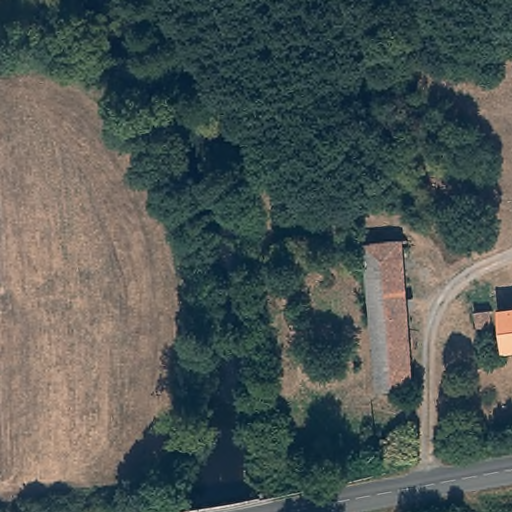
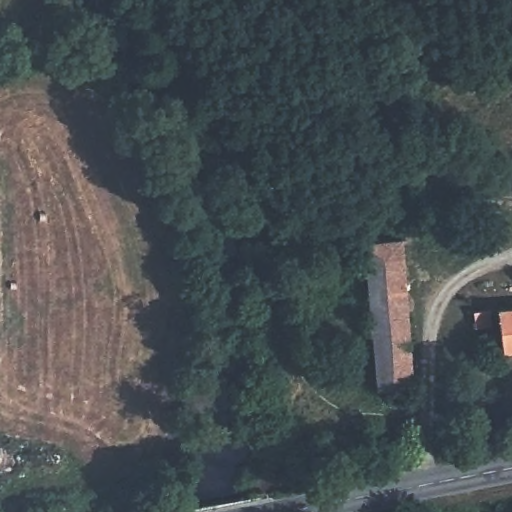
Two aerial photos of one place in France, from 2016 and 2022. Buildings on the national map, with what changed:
unchanged [(384,394),(372,243),(410,240),(418,393),(384,394)]
unchanged [(509,349),(503,308),(512,307),(512,349),(509,349)]
unchanged [(494,335),(476,337),(473,315),(492,313),(494,335)]

